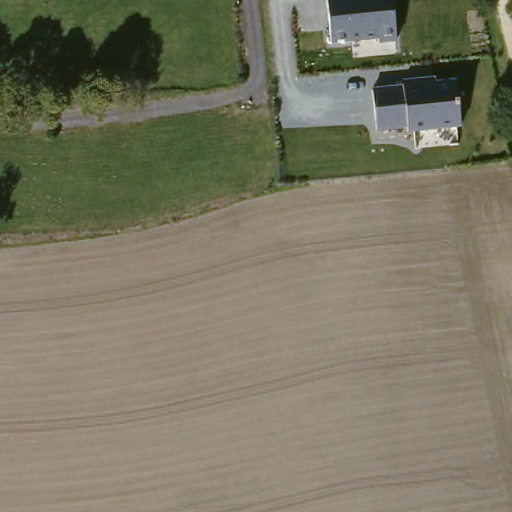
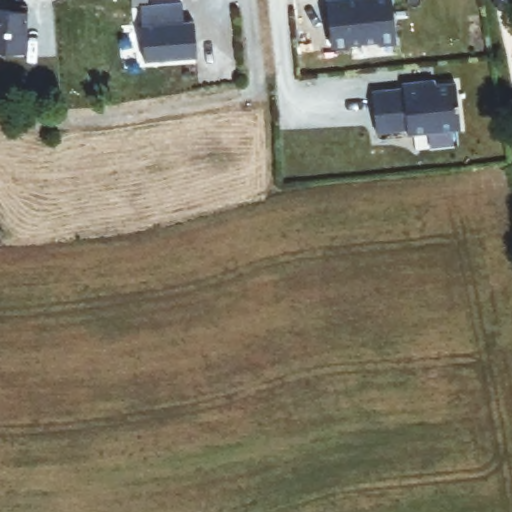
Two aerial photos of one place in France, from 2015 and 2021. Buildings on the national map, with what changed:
unchanged [(378,40),(331,46),(325,0),(392,0),(397,43),(378,45),(378,40)]
new [(182,2),(184,21),(194,20),(197,56),(144,60),(140,6),(182,2)]
new [(14,5),(29,6),(25,52),(0,50),(0,9),(13,10),(14,5)]
unchanged [(406,128),(406,118),(375,121),(373,88),(400,87),(400,77),(422,76),(424,85),(454,82),(458,123),(406,128)]

